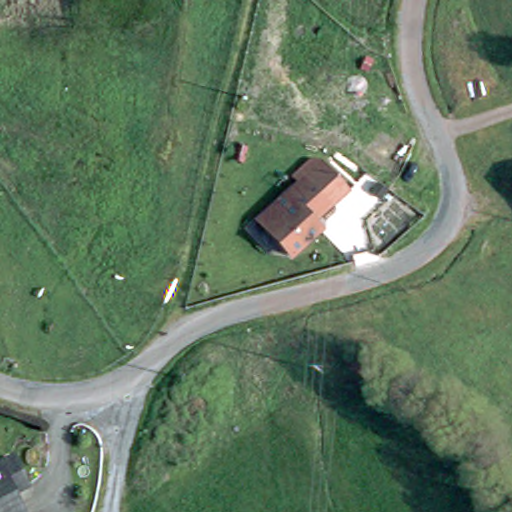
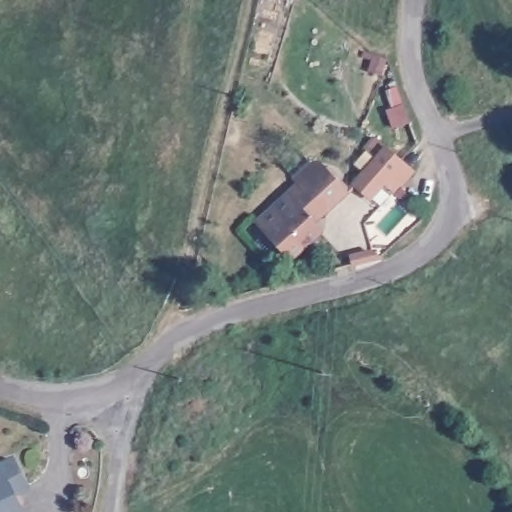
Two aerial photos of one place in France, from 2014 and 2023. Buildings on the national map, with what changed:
new [(383,149),(376,160),(364,151),(372,140),(383,149)]
new [(357,186),(370,170),(383,149),(400,161),(412,169),(397,190),(385,181),(373,199),(357,186)]
unchanged [(337,206),(320,224),(328,230),(291,264),(252,221),(303,171),(337,206)]
unchanged [(5,495),(12,512),(0,512),(0,457),(2,456),(20,488),(5,495)]

